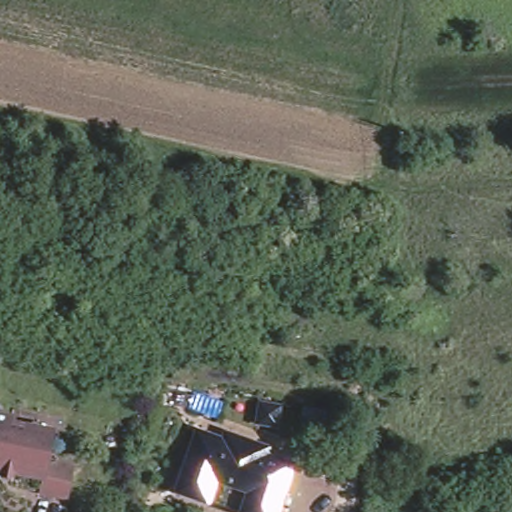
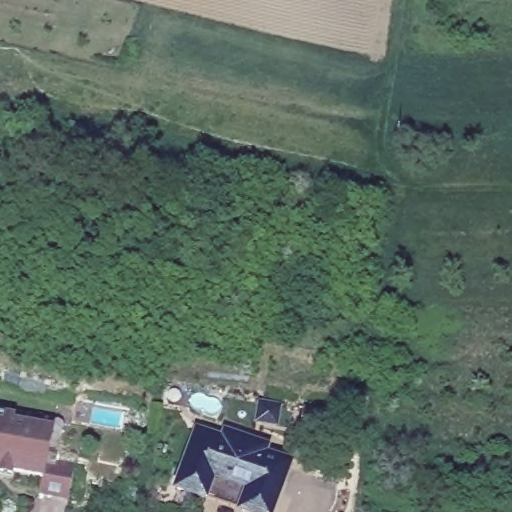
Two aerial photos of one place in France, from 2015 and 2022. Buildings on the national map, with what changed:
unchanged [(65,495),(37,490),(40,476),(12,471),(10,475),(0,474),(0,413),(11,415),(11,420),(44,425),(42,440),(57,442),(57,445),(55,460),(72,464),(65,495)]
unchanged [(181,476),(195,437),(220,446),(222,440),(224,435),(260,447),(263,449),(261,456),(287,465),(277,495),(271,512),(237,512),(203,500),(175,491),(181,476)]

